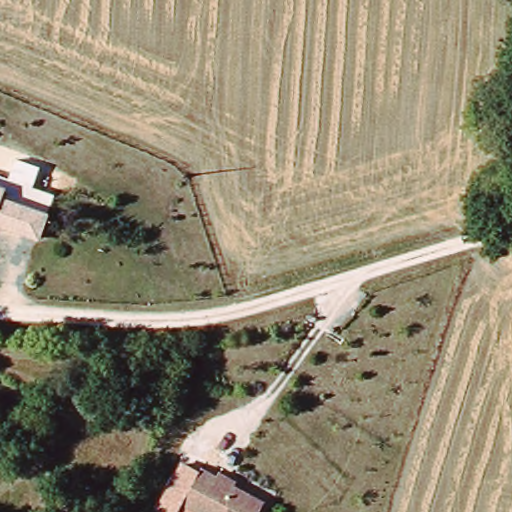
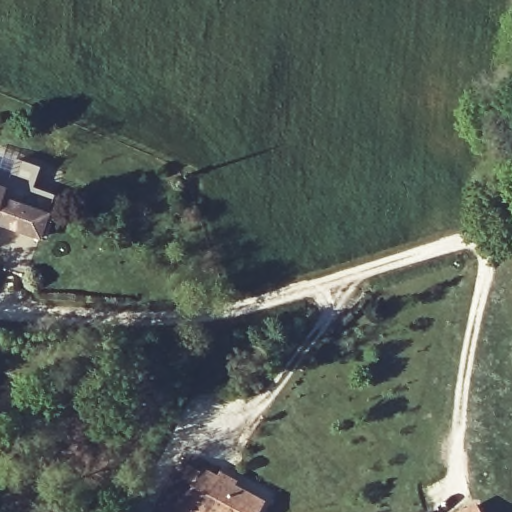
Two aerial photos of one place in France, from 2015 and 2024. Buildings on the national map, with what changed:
unchanged [(34,186),(56,194),(53,198),(9,182),(17,157),(42,165),(34,186)]
unchanged [(0,190),(0,178),(53,198),(47,217),(2,201),(5,191),(0,190)]
unchanged [(0,190),(5,191),(2,201),(47,217),(38,242),(0,227),(0,190)]
unchanged [(203,512),(163,512),(157,508),(183,462),(206,474),(189,504),(203,512)]
unchanged [(203,512),(189,504),(209,469),(224,477),(226,474),(243,483),(241,487),(271,504),(267,512),(203,512)]
new [(459,512),(477,503),(481,512),(459,512)]

